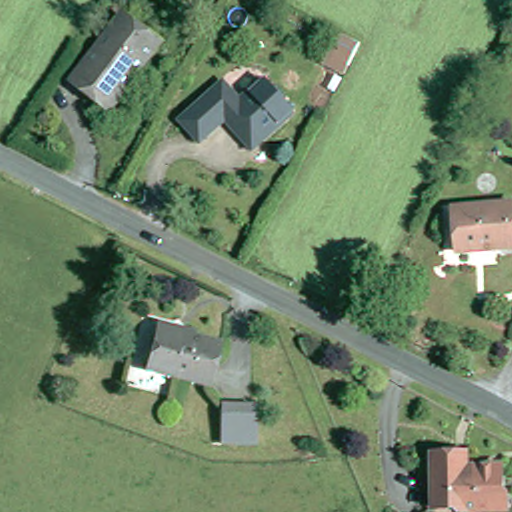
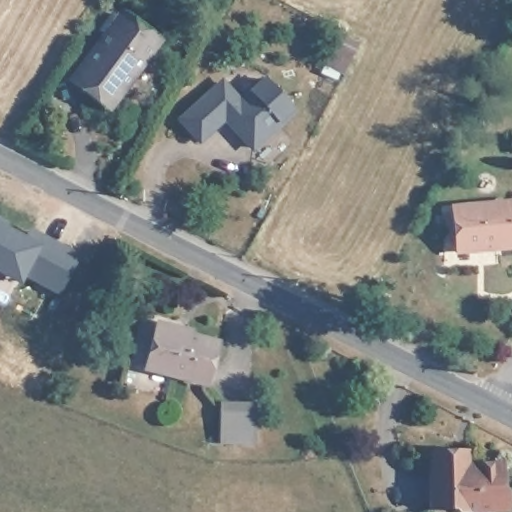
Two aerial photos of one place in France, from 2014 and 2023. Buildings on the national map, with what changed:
unchanged [(77,81),(124,17),(159,43),(113,107),(77,81)]
new [(338,40),(356,50),(345,73),(340,81),(321,72),(331,54),(338,40)]
unchanged [(185,126),(225,90),(242,108),(267,86),(295,116),(256,152),(228,121),(202,145),(185,126)]
unchanged [(484,251),(483,244),(459,246),(457,229),(463,228),(461,208),(512,204),(512,249),(484,251)]
new [(0,271),(0,222),(6,225),(3,229),(27,242),(32,233),(43,239),(78,258),(59,293),(25,274),(23,278),(20,282),(0,271)]
unchanged [(208,386),(147,370),(158,329),(219,345),(208,386)]
unchanged [(256,404),(257,443),(221,444),(219,404),(256,404)]
unchanged [(509,496),(510,511),(493,512),(460,512),(457,509),(434,510),(433,460),(433,453),(469,453),(469,467),(503,466),(504,491),(509,496)]

